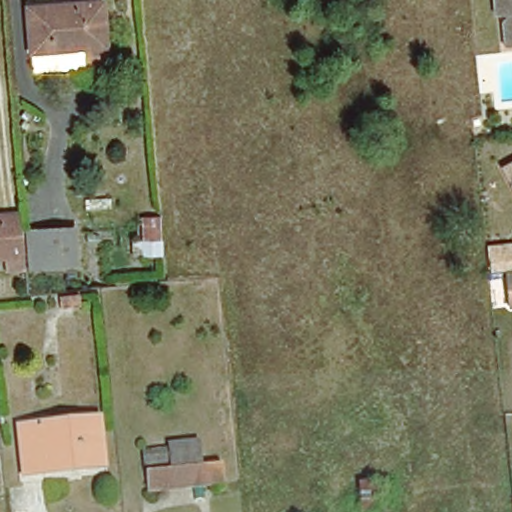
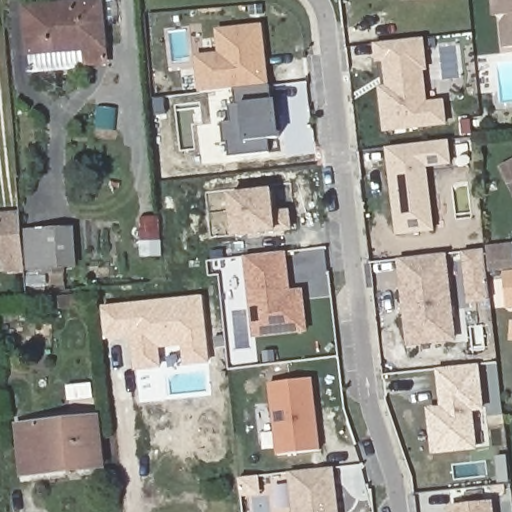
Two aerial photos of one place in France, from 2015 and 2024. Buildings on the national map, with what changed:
unchanged [(30,48),(27,1),(49,0),(103,0),(109,57),(87,59),(32,64),(30,48)]
unchanged [(512,44),(507,44),(505,19),(509,13),(508,11),(496,12),(495,0),(512,0),(512,44)]
new [(262,25),(270,98),(278,98),(284,138),(268,140),(267,150),(229,153),(227,143),(223,141),(222,124),(230,121),(229,104),(237,103),(234,89),(197,89),(194,57),(219,53),(217,30),(262,25)]
new [(383,90),(378,44),(422,39),(428,102),(445,101),(447,124),(385,131),(380,90),(383,90)]
new [(449,142),(452,165),(428,167),(437,232),(398,235),(386,148),(449,142)]
unchanged [(512,162),(512,187),(502,167),(512,162)]
new [(273,186),(277,210),(290,209),(292,230),(232,236),(229,192),(273,186)]
unchanged [(6,263),(5,251),(0,252),(0,209),(20,207),(22,226),(25,261),(6,263)]
unchanged [(162,239),(142,240),(142,216),(161,215),(162,239)]
unchanged [(76,258),(25,261),(22,226),(72,221),(76,258)]
unchanged [(491,252),(490,246),(512,244),(512,267),(492,268),(491,252)]
new [(285,252),(290,286),(303,286),(310,331),(252,339),(244,258),(285,252)]
new [(448,255),(458,343),(406,348),(397,261),(448,255)]
unchanged [(507,270),(512,269),(512,305),(510,305),(507,270)]
new [(102,307),(202,297),(209,362),(184,364),(182,346),(159,348),(161,368),(133,371),(130,335),(106,337),(102,307)]
new [(480,364),(484,410),(475,411),(478,449),(431,454),(427,408),(442,406),(437,368),(480,364)]
new [(315,377),(322,449),(275,454),(267,382),(315,377)]
unchanged [(100,461),(17,469),(12,419),(94,410),(100,461)]
unchanged [(224,483),(204,485),(148,490),(146,470),(144,449),(168,446),(167,444),(200,440),(202,464),(222,462),(224,483)]
new [(338,512),(292,512),(290,472),(334,468),(338,512)]
new [(495,512),(449,512),(448,504),(494,501),(495,512)]

